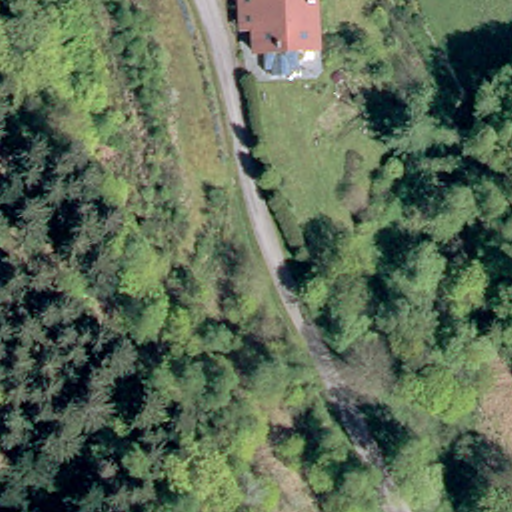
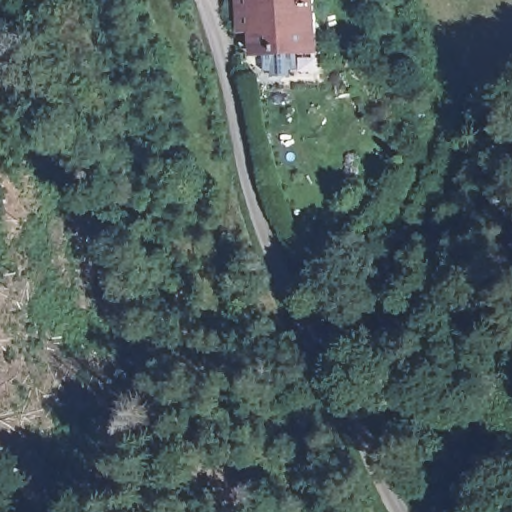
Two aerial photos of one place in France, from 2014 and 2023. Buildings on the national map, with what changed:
unchanged [(315,50),(255,53),(251,0),(313,0),(315,50)]

